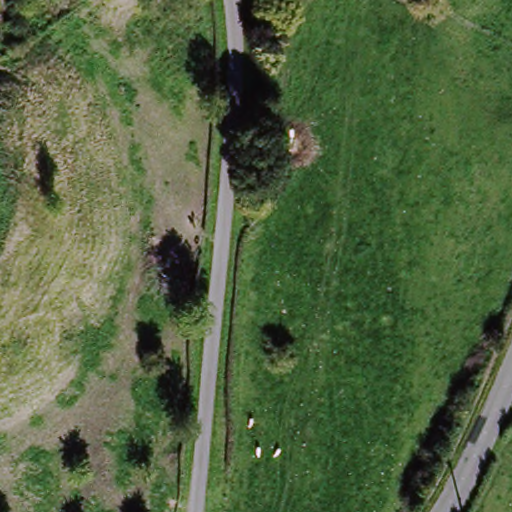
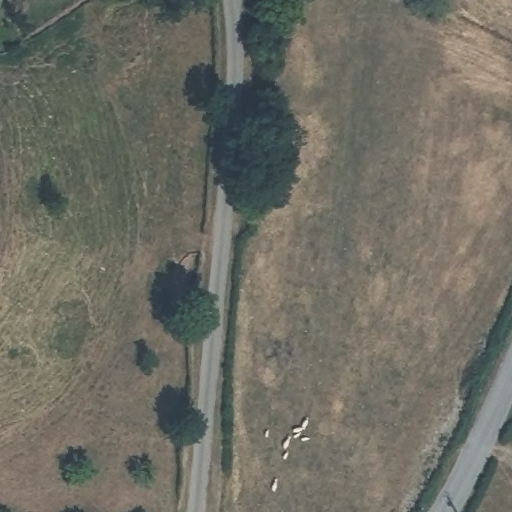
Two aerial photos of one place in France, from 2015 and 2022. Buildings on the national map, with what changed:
[]

